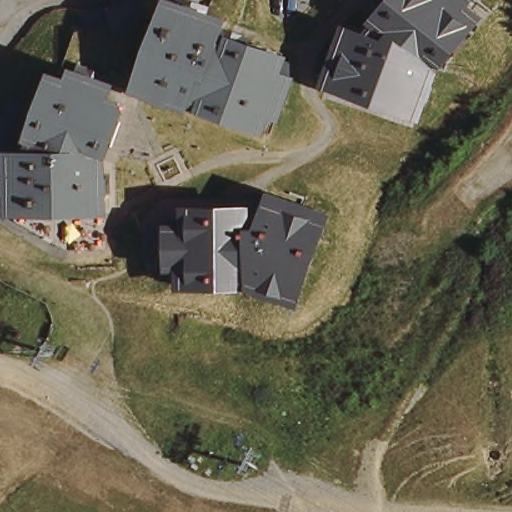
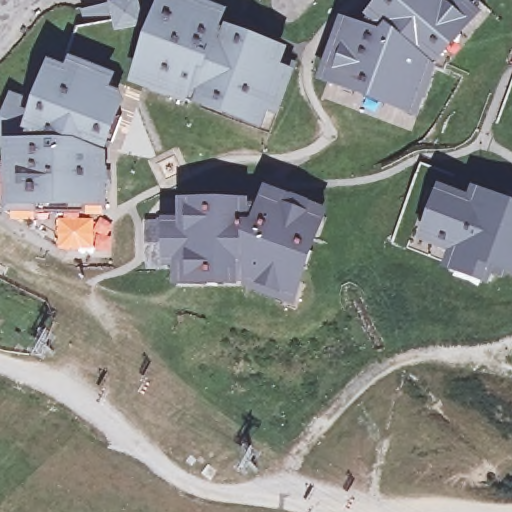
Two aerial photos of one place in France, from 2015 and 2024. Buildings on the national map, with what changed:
unchanged [(234,15),(228,30),(291,52),(290,57),(300,61),(296,72),(280,119),(272,116),(266,134),(133,90),(156,25),(116,32),(113,20),(85,26),(80,10),(110,3),(114,2),(114,0),(193,0),(234,15)]
unchanged [(370,30),(367,20),(384,0),(476,0),(491,12),(443,65),(420,121),(318,82),(342,19),(370,30)]
unchanged [(40,101),(53,65),(70,71),(75,60),(120,79),(115,95),(125,99),(127,107),(110,154),(110,214),(9,214),(9,145),(0,142),(0,125),(14,91),(40,101)]
unchanged [(146,220),(167,221),(183,221),(181,204),(261,203),(265,189),(334,215),(297,308),(243,287),(220,286),(177,288),(175,270),(165,270),(145,270),(146,220)]
new [(472,200),(476,190),(512,204),(512,277),(497,271),(491,288),(445,270),(451,256),(422,245),(442,189),(472,200)]

